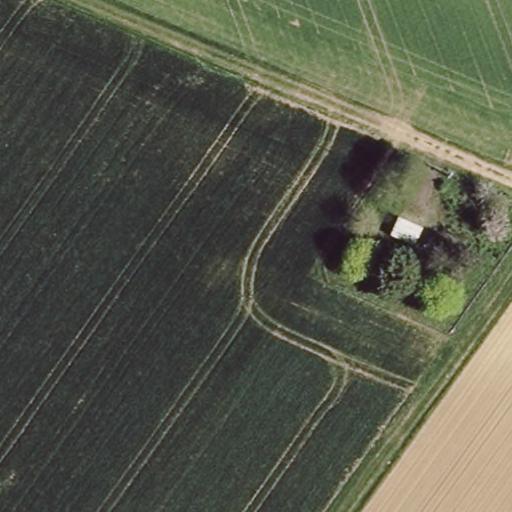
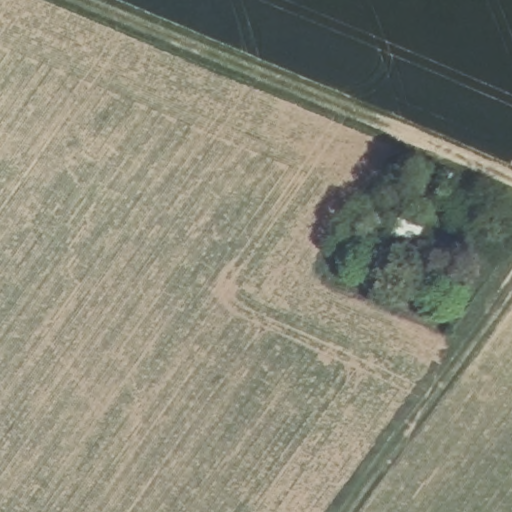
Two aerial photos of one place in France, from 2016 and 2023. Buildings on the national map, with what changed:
unchanged [(422,224),(414,242),(392,232),(400,215),(422,224)]

